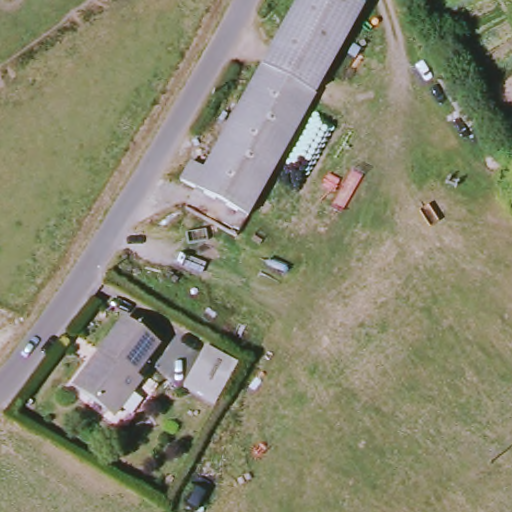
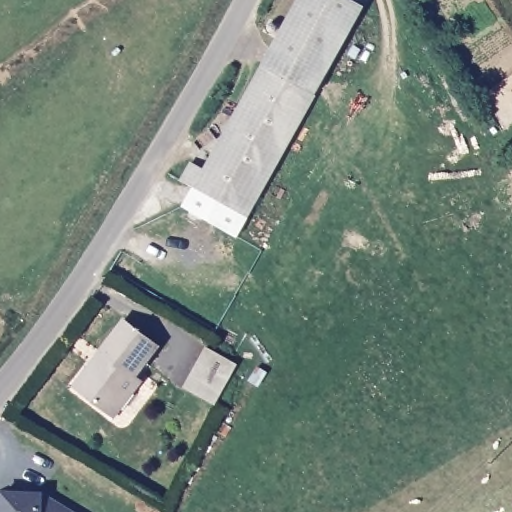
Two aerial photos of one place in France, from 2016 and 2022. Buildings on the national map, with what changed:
unchanged [(195,163),(211,172),(305,0),(353,0),(367,8),(252,219),(185,182),(195,163)]
unchanged [(163,344),(140,375),(147,380),(120,414),(80,385),(128,320),(163,344)]
unchanged [(205,348),(238,365),(217,406),(185,389),(205,348)]
new [(45,493),(76,512),(0,512),(0,492),(1,492),(45,493)]

